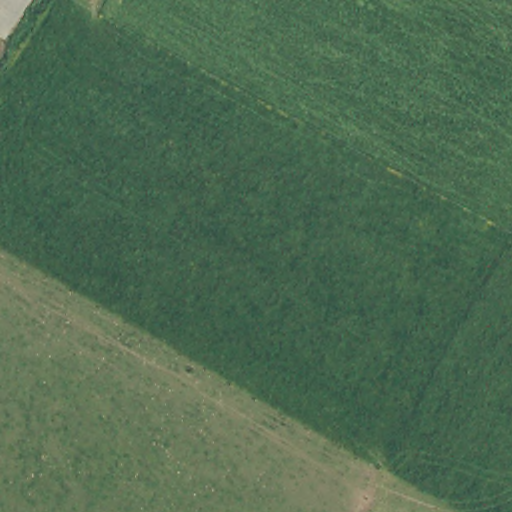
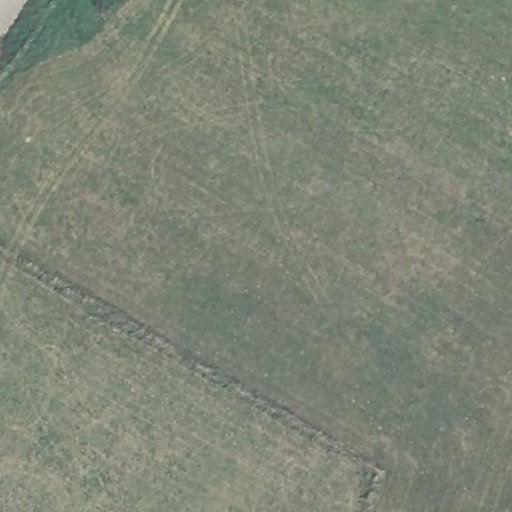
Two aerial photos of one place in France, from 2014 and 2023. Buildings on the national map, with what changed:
unchanged [(23,0),(0,34),(0,0),(23,0)]

